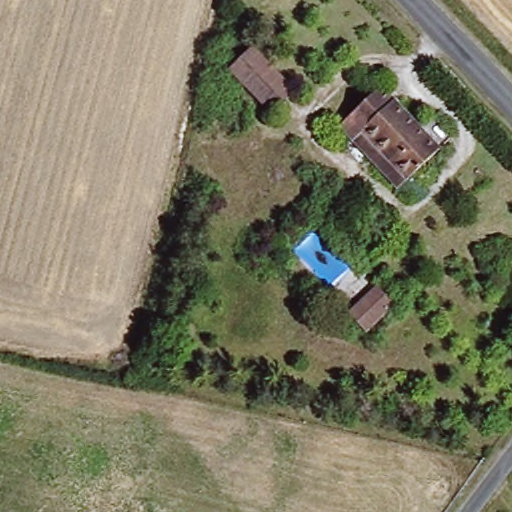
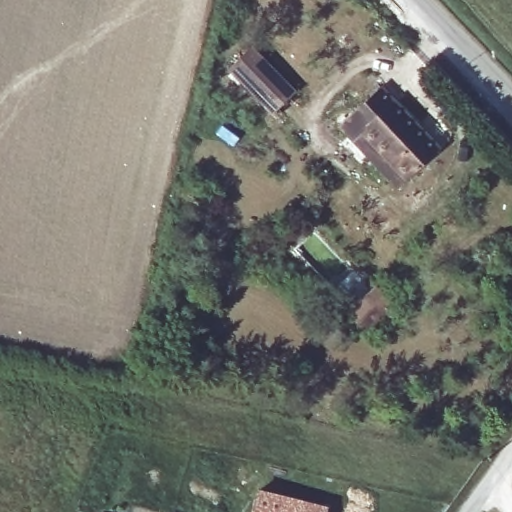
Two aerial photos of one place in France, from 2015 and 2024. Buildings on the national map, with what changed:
unchanged [(235,71),(259,46),(298,85),(274,111),(235,71)]
unchanged [(366,143),(348,125),(384,90),(441,147),(415,174),(406,184),(366,143)]
unchanged [(401,309),(418,327),(388,355),(374,335),(401,309)]
new [(257,486),(330,505),(328,512),(250,512),(257,486)]

